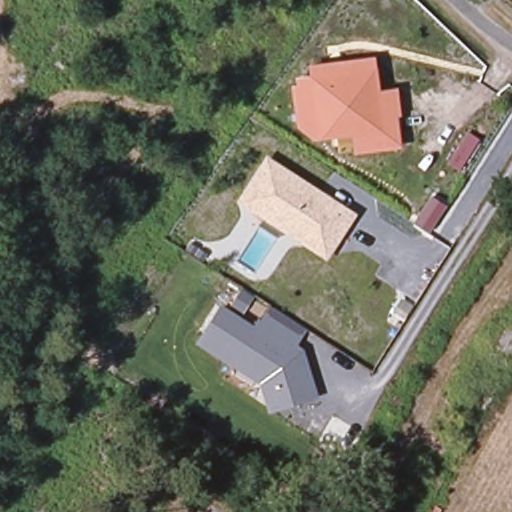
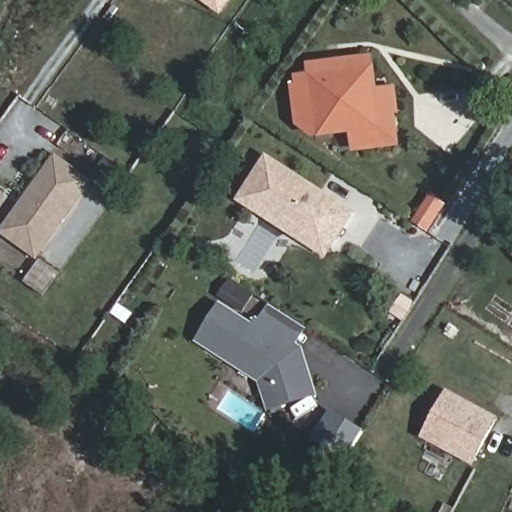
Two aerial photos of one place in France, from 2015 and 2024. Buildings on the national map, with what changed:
new [(200,0),(232,0),(221,15),(200,0)]
unchanged [(381,89),(398,87),(402,115),(397,116),(401,147),(353,153),(351,135),(312,140),(296,125),(292,84),(298,84),(297,75),(311,75),(308,62),(375,55),(381,89)]
new [(473,135),(485,142),(466,172),(454,166),(473,135)]
new [(37,261),(0,234),(0,230),(55,152),(94,180),(37,261)]
unchanged [(327,260),(237,201),(267,154),(357,213),(327,260)]
new [(432,197),(446,206),(429,231),(415,222),(432,197)]
unchanged [(268,413),(257,383),(196,342),(221,302),(230,307),(241,287),(256,296),(243,318),(256,327),(271,306),(308,329),(298,346),(306,351),(317,397),(268,413)]
demolished [(512,362),(490,350),(503,325),(512,330),(512,362)]
new [(447,393),(496,419),(473,461),(426,435),(447,393)]
new [(333,410),(362,428),(347,453),(317,434),(333,410)]

